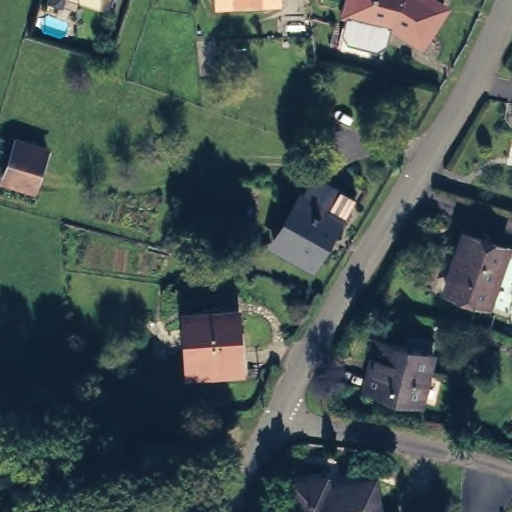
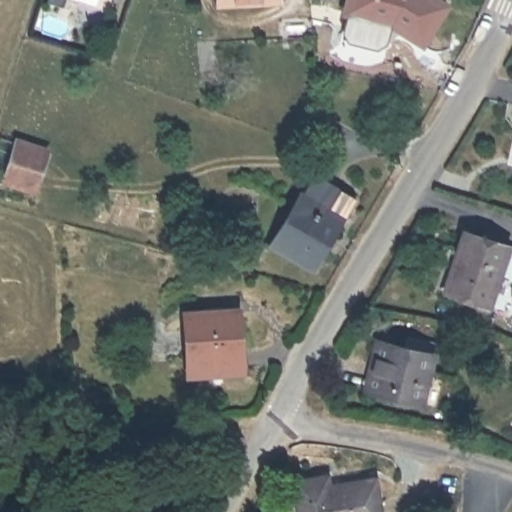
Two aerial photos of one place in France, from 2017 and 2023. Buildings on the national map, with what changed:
unchanged [(273,4),(216,6),(216,0),(273,0),(273,4)]
unchanged [(350,0),(446,0),(429,36),(397,19),(386,16),(382,35),(344,27),(350,0)]
unchanged [(30,184),(5,175),(18,137),(42,145),(30,184)]
unchanged [(296,198),(299,200),(310,178),(349,200),(333,236),(326,233),(307,267),(271,247),(296,198)]
unchanged [(455,227),(512,248),(512,266),(498,306),(436,284),(455,227)]
unchanged [(192,310),(240,308),(243,371),(195,372),(192,310)]
unchanged [(384,336),(438,353),(423,402),(369,385),(384,336)]
unchanged [(314,480),(317,492),(374,480),(380,512),(298,512),(292,485),(314,480)]

